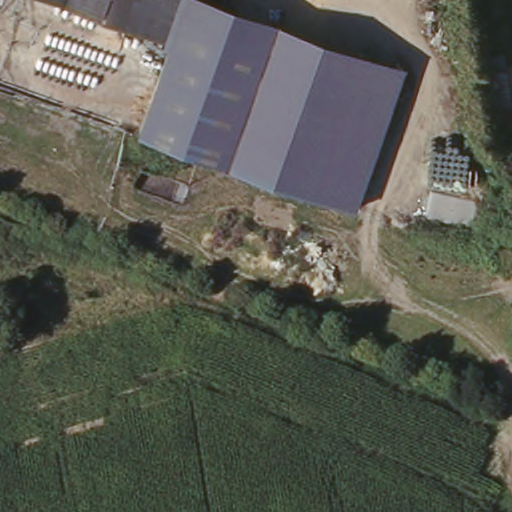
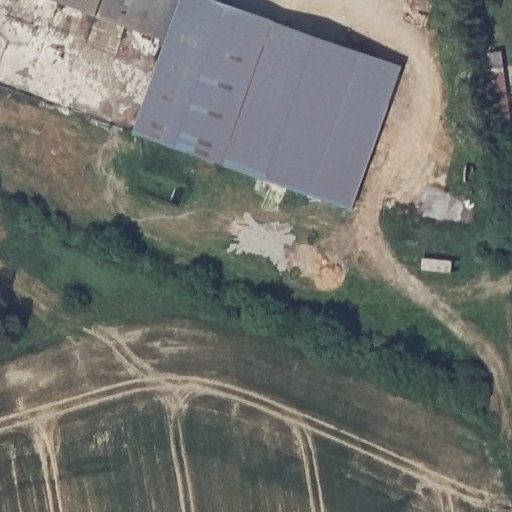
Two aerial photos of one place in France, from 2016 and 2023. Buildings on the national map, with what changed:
unchanged [(164,35),(65,0),(177,0),(164,35)]
unchanged [(355,205),(137,129),(183,0),(226,0),(406,63),(355,205)]

